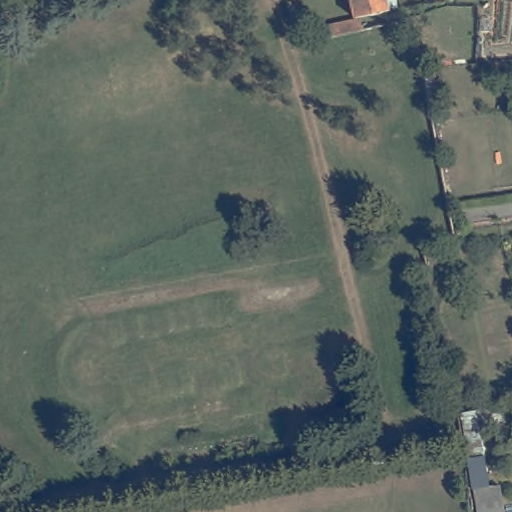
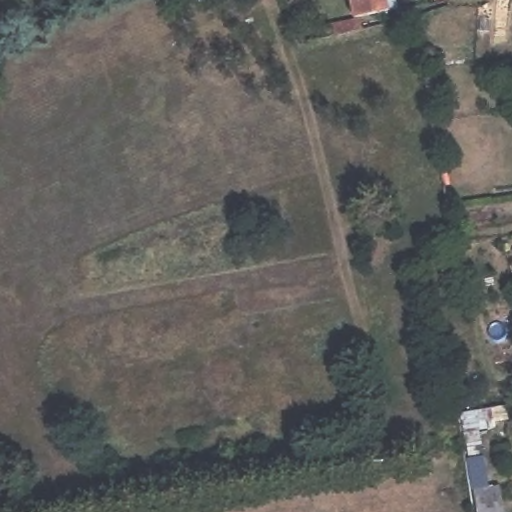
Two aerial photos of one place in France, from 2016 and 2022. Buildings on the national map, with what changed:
unchanged [(367,0),(388,0),(367,5),(367,0)]
unchanged [(325,15),(363,6),(366,19),(327,27),(325,15)]
unchanged [(441,102),(428,104),(422,71),(435,70),(441,102)]
unchanged [(510,380),(512,379),(512,390),(510,380)]
unchanged [(495,490),(505,490),(508,512),(479,512),(463,416),(504,411),(507,425),(485,430),(495,490)]

